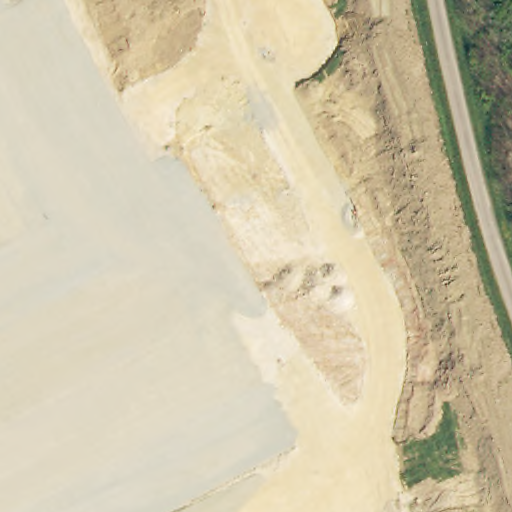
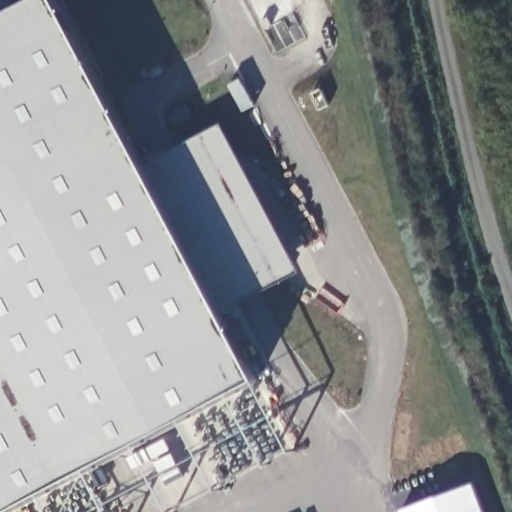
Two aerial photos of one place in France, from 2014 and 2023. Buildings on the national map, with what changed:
new [(222,124),(300,271),(220,307),(258,380),(6,512),(0,512),(0,18),(34,0),(56,0),(142,165),(222,124)]

